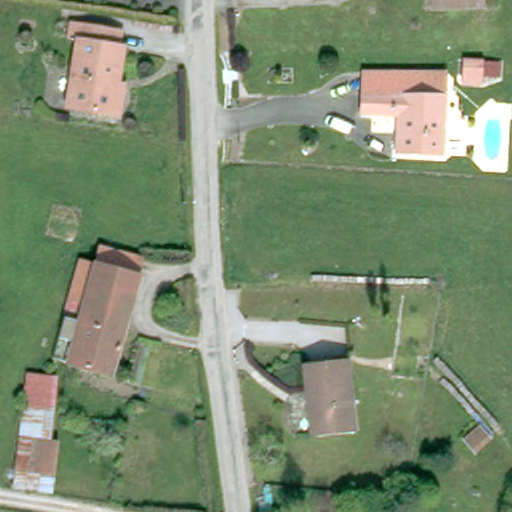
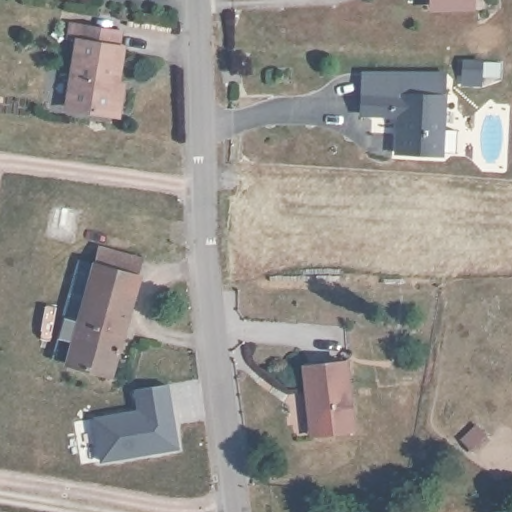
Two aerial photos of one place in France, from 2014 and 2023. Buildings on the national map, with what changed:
unchanged [(437,6),(437,0),(471,0),(471,5),(437,6)]
unchanged [(126,115),(118,114),(75,108),(87,26),(125,31),(124,45),(127,45),(122,82),(131,84),(126,115)]
unchanged [(462,80),(464,66),(480,67),(480,81),(479,89),(462,87),(462,80)]
unchanged [(442,159),(397,156),(399,119),(362,116),(362,99),(364,79),(389,80),(445,84),(445,98),(442,159)]
unchanged [(90,264),(103,268),(107,251),(119,254),(149,261),(144,278),(149,280),(121,380),(62,362),(90,264)]
unchanged [(307,394),(304,365),(347,361),(355,430),(320,432),(312,433),(307,394)]
new [(139,411),(135,390),(167,385),(177,447),(102,460),(95,418),(139,411)]
demolished [(63,438),(59,470),(45,468),(49,437),(63,438)]

